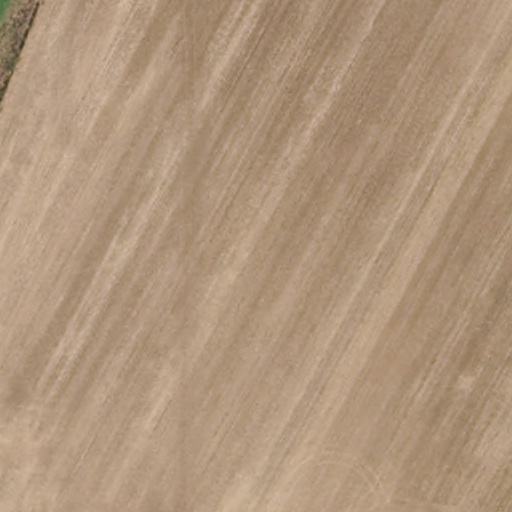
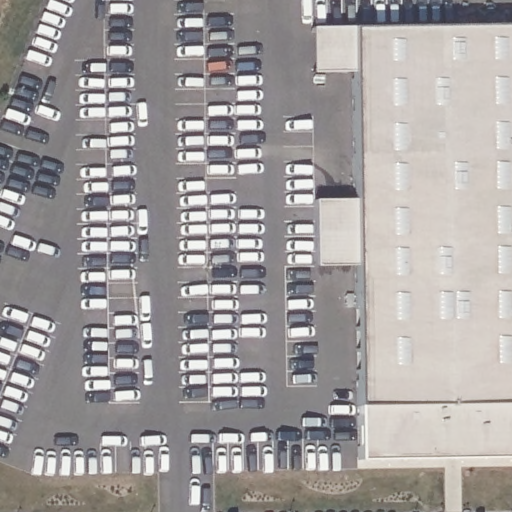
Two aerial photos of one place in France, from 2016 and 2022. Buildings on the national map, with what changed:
new [(359,459),(356,266),(315,266),(315,199),(355,199),(353,73),(312,73),(311,28),(353,28),(512,25),(512,458),(359,459)]

